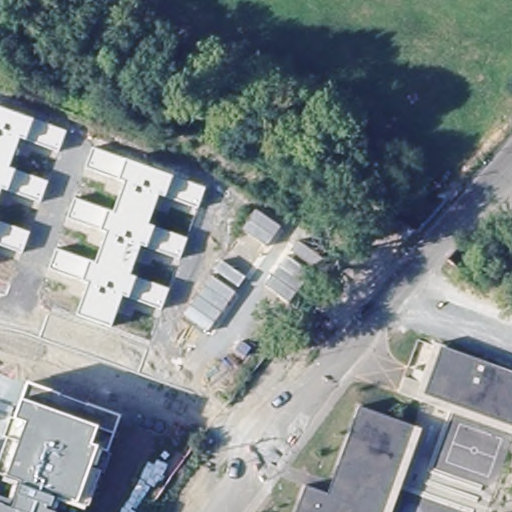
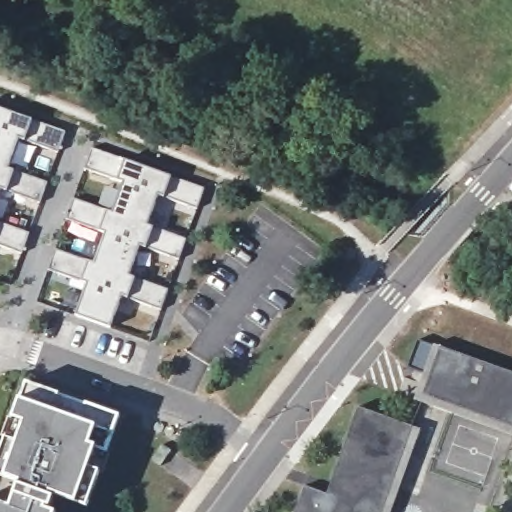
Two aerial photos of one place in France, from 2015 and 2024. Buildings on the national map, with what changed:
unchanged [(65,130),(57,151),(26,140),(20,137),(8,168),(14,170),(47,181),(39,201),(7,190),(1,189),(0,191),(0,107),(34,119),(65,130)]
unchanged [(125,160),(172,176),(205,187),(198,209),(165,197),(159,195),(148,225),(154,227),(187,238),(180,258),(147,246),(140,244),(130,275),(136,277),(168,288),(161,309),(129,297),(122,295),(112,327),(77,315),(89,281),(84,280),(49,268),(56,249),(91,261),(96,262),(107,230),(102,229),(67,218),(74,200),(109,210),(114,212),(126,180),(120,177),(86,168),(92,148),(125,160)]
unchanged [(22,252),(0,245),(0,222),(29,232),(22,252)]
unchanged [(512,375),(512,437),(412,401),(433,346),(512,375)]
unchanged [(107,450),(100,471),(89,507),(86,506),(85,511),(59,501),(55,512),(0,512),(0,496),(8,498),(12,485),(1,480),(3,475),(0,475),(0,455),(7,438),(14,418),(21,399),(27,383),(120,416),(107,450)]
unchanged [(307,487),(329,495),(361,408),(423,431),(394,512),(297,512),(307,487)]

